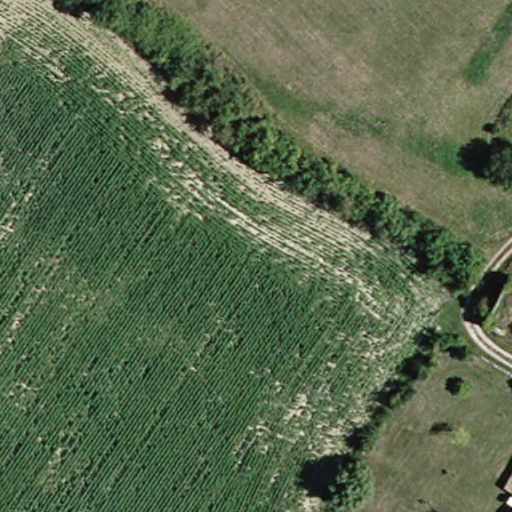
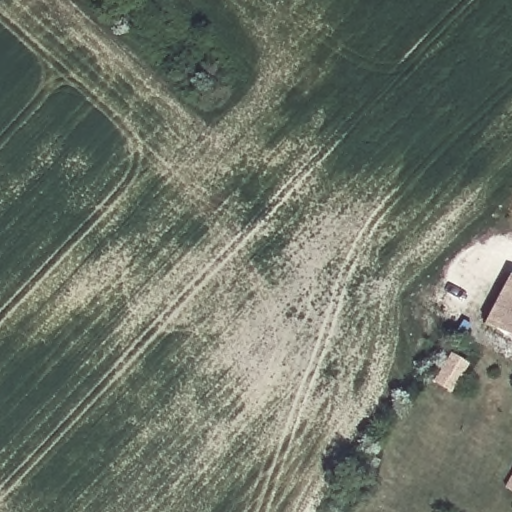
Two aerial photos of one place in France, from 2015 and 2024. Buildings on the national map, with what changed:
new [(512,274),(512,335),(484,320),(509,272),(512,274)]
new [(512,476),(512,490),(506,485),(512,476)]

